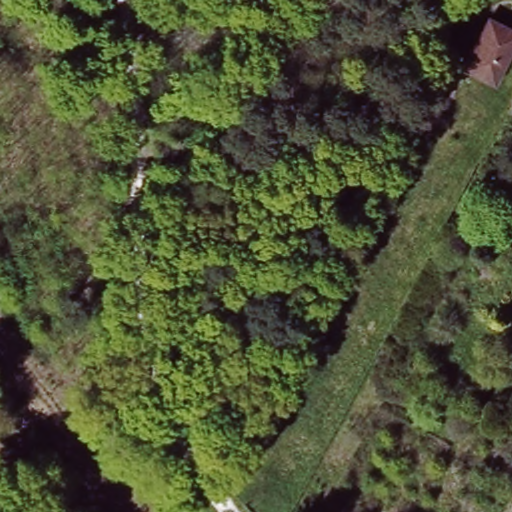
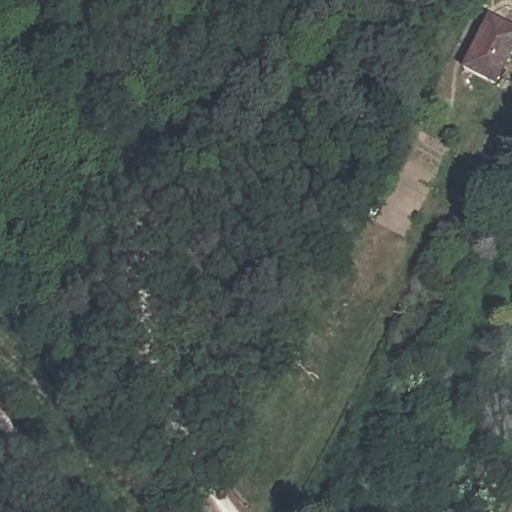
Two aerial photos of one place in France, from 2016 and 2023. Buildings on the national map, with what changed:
unchanged [(512,29),(512,54),(498,82),(469,67),(493,19),(512,29)]
unchanged [(512,247),(512,255),(509,253),(512,247)]

